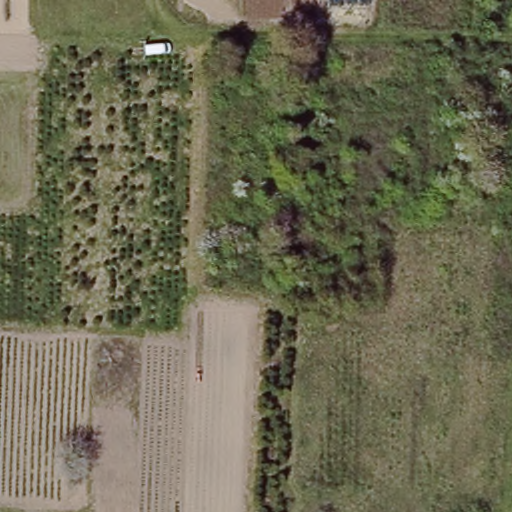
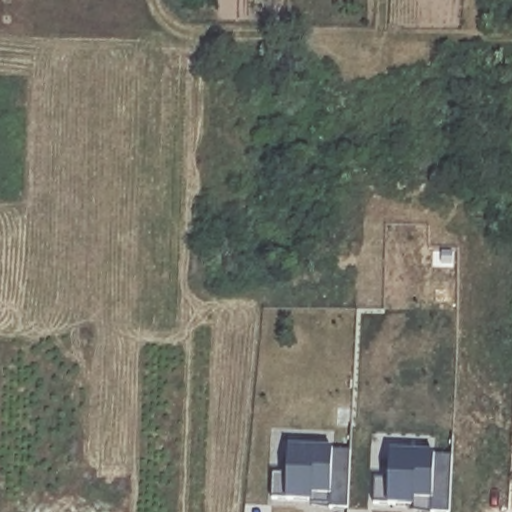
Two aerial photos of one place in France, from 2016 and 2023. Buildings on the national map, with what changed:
new [(331,508),(330,510),(312,507),(315,502),(288,502),(288,500),(275,500),(275,474),(286,475),(288,447),(332,449),(353,451),(350,508),(331,508)]
new [(421,508),(375,506),(376,477),(390,478),(392,453),(456,455),(454,512),(421,512),(421,508)]

